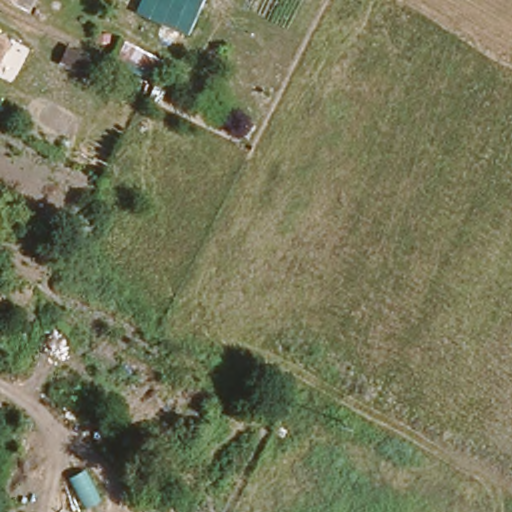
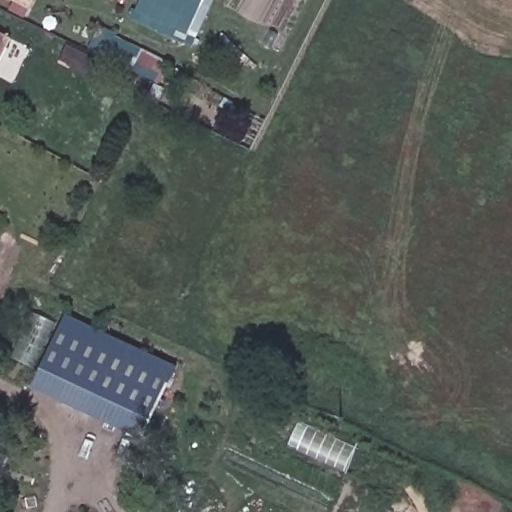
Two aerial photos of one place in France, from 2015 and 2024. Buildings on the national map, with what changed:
unchanged [(13,0),(22,0),(21,3),(13,0)]
new [(189,37),(184,44),(137,22),(140,15),(135,12),(141,0),(214,0),(195,40),(189,37)]
unchanged [(0,54),(0,35),(8,39),(0,54)]
unchanged [(92,57),(85,74),(55,61),(63,43),(92,57)]
unchanged [(134,75),(131,82),(113,74),(116,67),(134,75)]
new [(65,318),(173,368),(140,439),(32,387),(65,318)]

